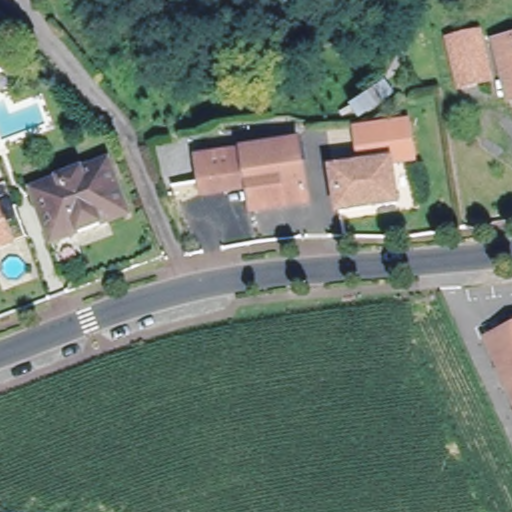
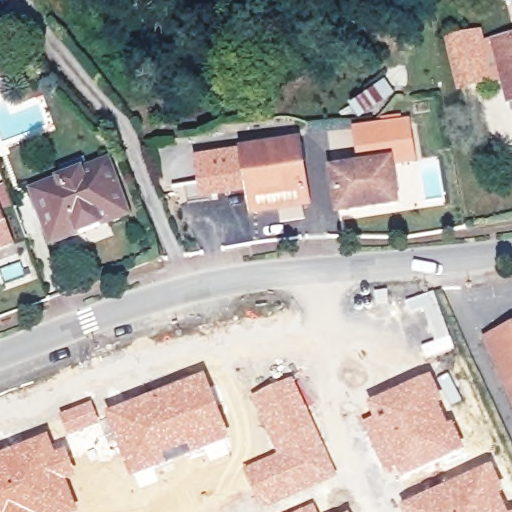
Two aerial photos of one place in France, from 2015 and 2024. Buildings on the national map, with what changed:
unchanged [(498,44),(512,41),(512,100),(511,100),(498,44)]
unchanged [(485,48),(491,82),(462,88),(455,54),(485,48)]
unchanged [(366,146),(364,128),(412,122),(415,143),(417,159),(396,162),(402,199),(345,209),(338,169),(368,164),(366,146)]
unchanged [(308,198),(255,207),(250,185),(203,193),(196,158),(195,157),(300,140),(301,150),(308,198)]
unchanged [(39,188),(114,160),(133,212),(59,239),(39,188)]
unchanged [(12,245),(0,249),(0,212),(12,245)]
new [(426,316),(425,310),(410,315),(405,303),(433,293),(437,305),(455,349),(427,359),(421,346),(436,341),(426,316)]
unchanged [(512,393),(492,352),(512,342),(512,393)]
new [(368,412),(366,407),(393,393),(431,377),(433,382),(448,375),(461,400),(450,406),(442,390),(438,392),(445,411),(465,452),(400,480),(395,470),(386,474),(360,416),(368,412)]
new [(275,453),(250,395),(295,377),(338,477),(262,510),(243,469),(275,453)]
new [(156,395),(204,378),(229,442),(191,456),(189,451),(166,460),(169,464),(152,472),(156,481),(140,487),(136,478),(131,480),(107,416),(156,395)]
new [(91,404),(99,423),(68,435),(61,416),(91,404)]
new [(66,451),(79,480),(69,484),(80,512),(0,512),(0,456),(49,437),(56,454),(66,451)]
new [(492,468),(506,503),(511,512),(403,512),(401,509),(443,488),(492,468)]
new [(317,512),(296,512),(313,504),(317,512)]

